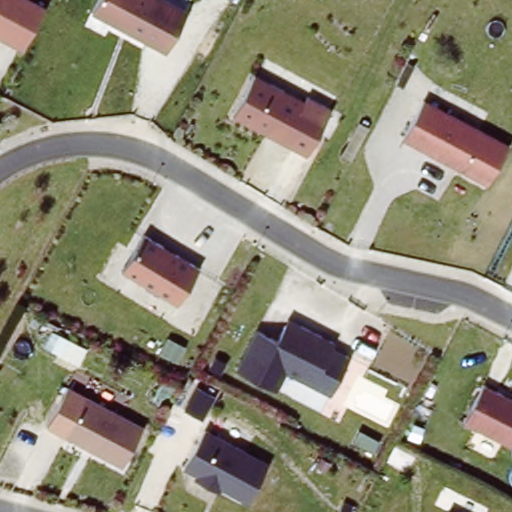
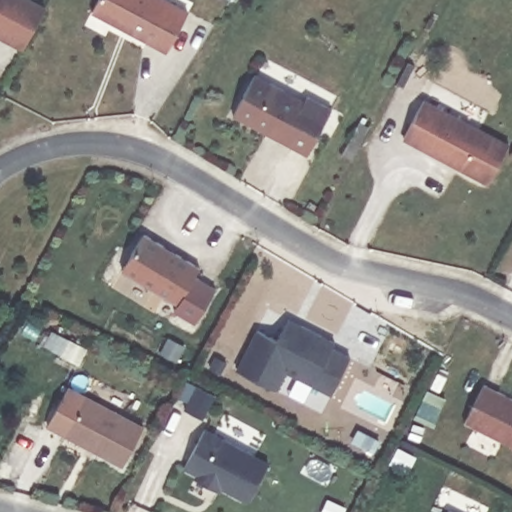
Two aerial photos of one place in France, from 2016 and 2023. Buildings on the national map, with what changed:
unchanged [(44,4),(21,44),(0,32),(0,0),(38,0),(44,4)]
unchanged [(188,5),(170,45),(93,9),(97,0),(178,0),(188,5)]
unchanged [(303,95),(307,89),(335,106),(308,151),(234,111),(255,70),(303,95)]
unchanged [(511,144),(493,180),(404,133),(425,95),(511,144)]
unchanged [(203,268),(182,304),(119,262),(140,227),(203,268)]
unchanged [(277,342),(290,315),(333,338),(330,342),(351,353),(330,392),(287,369),(275,389),(237,365),(256,329),(277,342)]
unchanged [(512,445),(461,418),(481,376),(512,393),(512,445)]
unchanged [(145,427),(124,465),(45,417),(67,378),(145,427)]
unchanged [(275,467),(253,506),(220,487),(216,495),(195,481),(196,476),(179,465),(203,423),(275,467)]
unchanged [(443,512),(446,505),(461,512),(443,512)]

